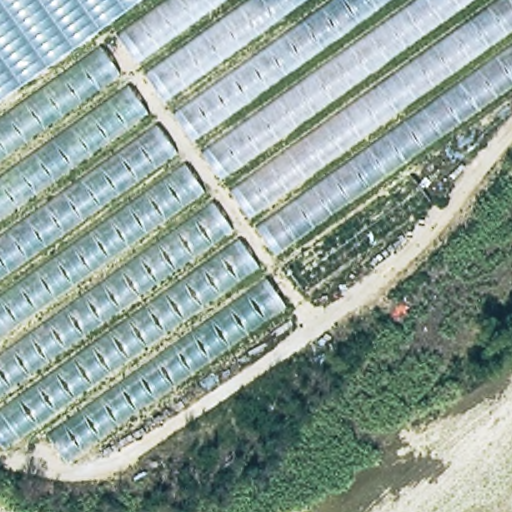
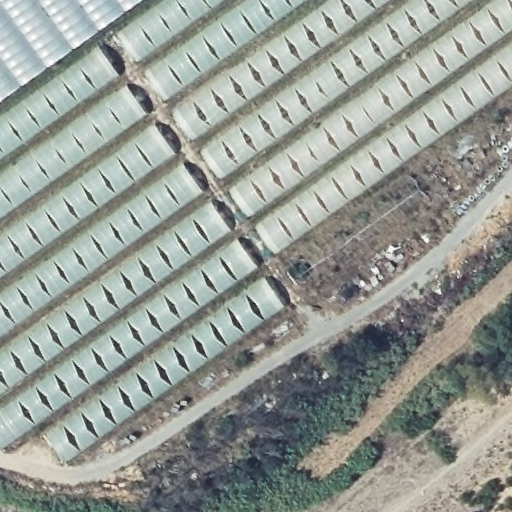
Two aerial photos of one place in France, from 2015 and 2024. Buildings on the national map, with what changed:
unchanged [(137,0),(0,97),(0,0),(137,0)]
unchanged [(512,0),(512,85),(273,258),(298,295),(58,457),(34,427),(2,450),(0,448),(0,121),(169,0),(512,0)]

